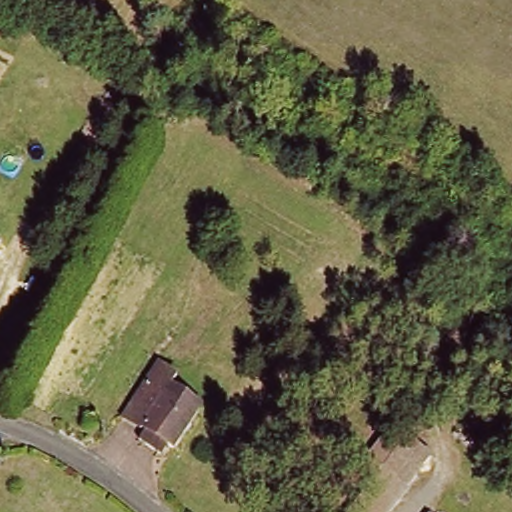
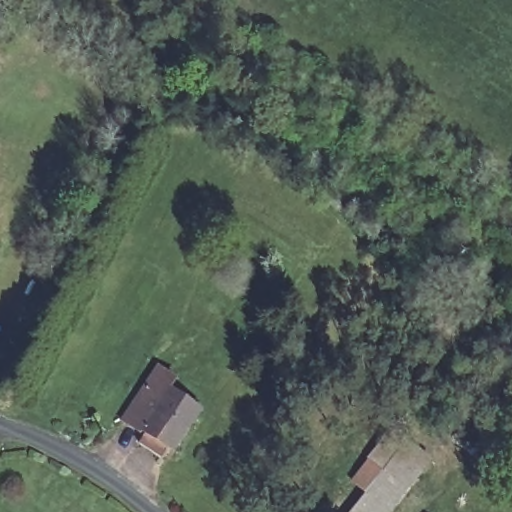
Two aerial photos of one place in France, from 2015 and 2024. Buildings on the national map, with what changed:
unchanged [(155,438),(160,430),(141,416),(171,372),(186,382),(185,385),(210,404),(181,445),(176,441),(171,449),(155,438)]
new [(352,482),(369,460),(383,472),(412,438),(436,457),(392,512),(352,512),(366,493),(352,482)]

